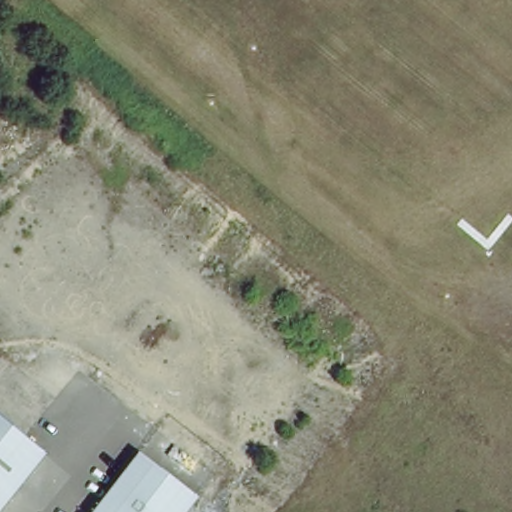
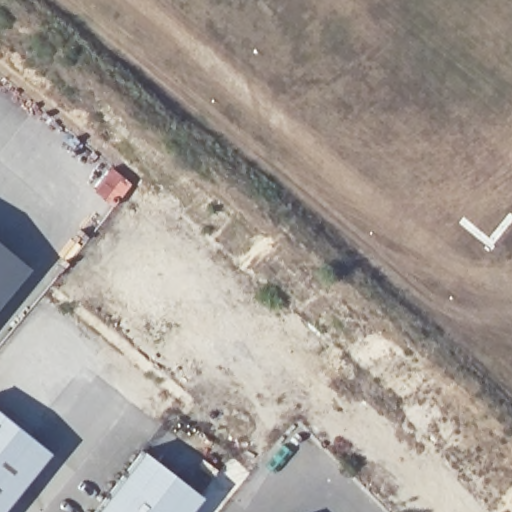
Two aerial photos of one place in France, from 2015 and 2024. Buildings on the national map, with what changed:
new [(0,245),(27,267),(0,301),(0,245)]
unchanged [(50,447),(0,512),(0,408),(22,425),(50,447)]
unchanged [(185,512),(94,512),(147,445),(202,491),(185,512)]

